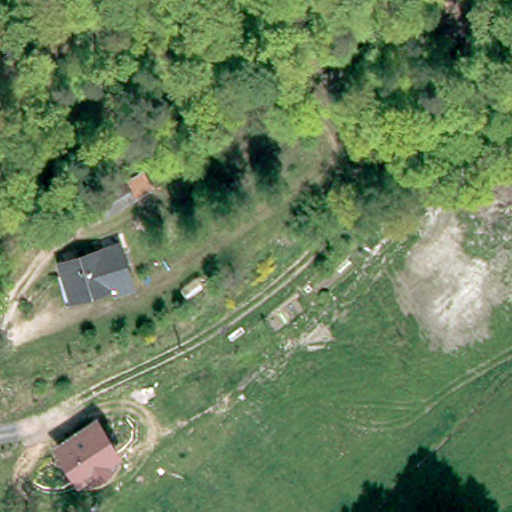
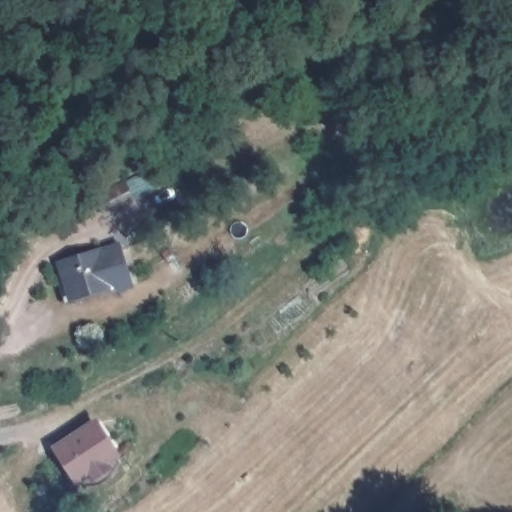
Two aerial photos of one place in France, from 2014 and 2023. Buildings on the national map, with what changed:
unchanged [(130,199),(110,210),(105,213),(93,193),(120,178),(130,199)]
unchanged [(139,279),(117,288),(114,280),(76,296),(62,262),(101,245),(106,257),(127,249),(139,279)]
unchanged [(50,428),(84,400),(121,453),(85,478),(73,461),(60,441),(50,428)]
unchanged [(25,466),(60,441),(73,461),(40,486),(25,466)]

